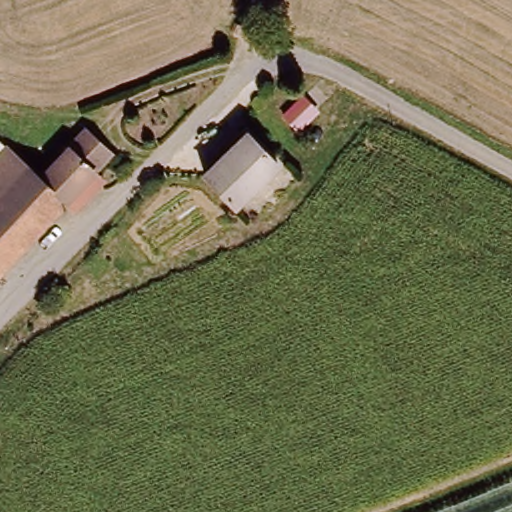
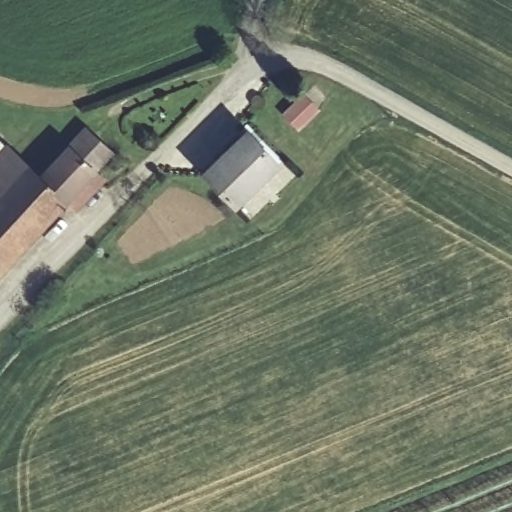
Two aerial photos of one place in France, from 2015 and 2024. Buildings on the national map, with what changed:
unchanged [(85,126),(115,154),(110,158),(68,203),(38,177),(80,131),(85,126)]
unchanged [(193,180),(245,131),(277,163),(224,214),(193,180)]
unchanged [(5,147),(34,173),(38,177),(68,203),(0,276),(0,153),(5,147)]

